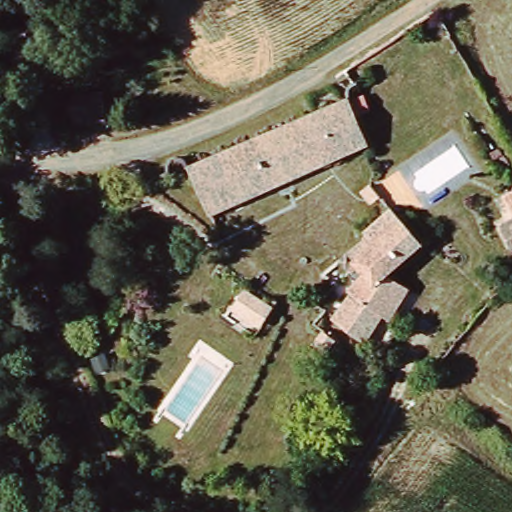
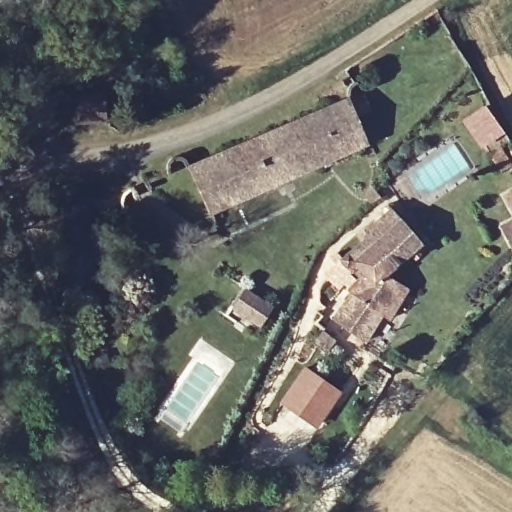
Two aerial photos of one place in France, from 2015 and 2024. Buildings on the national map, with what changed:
demolished [(68,78),(94,73),(97,99),(73,101),(68,78)]
new [(79,94),(105,89),(108,115),(84,118),(79,94)]
unchanged [(198,168),(227,155),(363,96),(383,143),(221,218),(198,168)]
new [(483,105),(501,131),(477,148),(460,121),(483,105)]
unchanged [(394,276),(412,299),(400,316),(363,281),(370,273),(358,260),(378,236),(369,224),(399,202),(401,216),(431,239),(394,276)]
unchanged [(512,223),(512,228),(510,224),(512,223)]
unchanged [(287,317),(266,346),(233,322),(253,293),(287,317)]
unchanged [(349,330),(362,300),(398,321),(385,354),(349,330)]
unchanged [(115,359),(121,374),(106,379),(102,365),(115,359)]
new [(302,367),(339,393),(315,429),(278,403),(302,367)]

